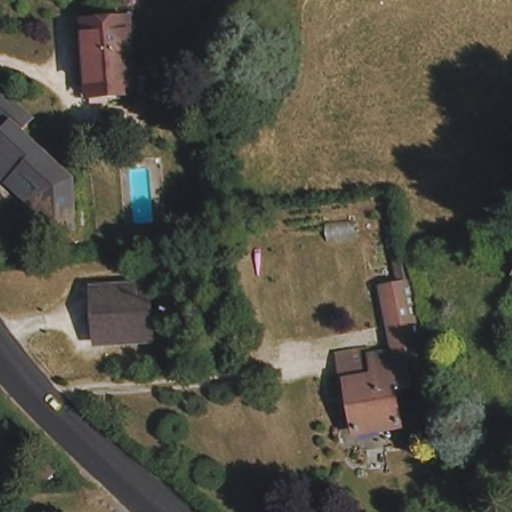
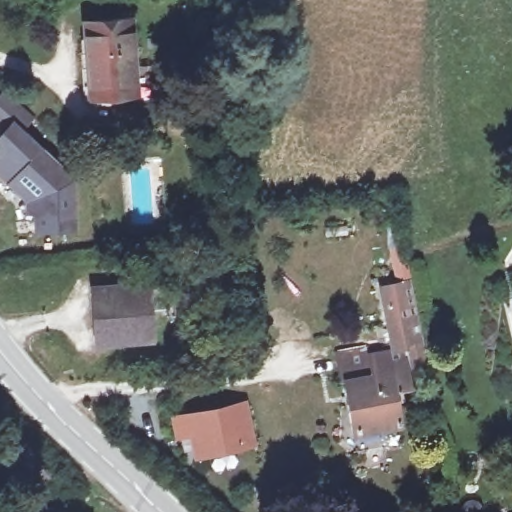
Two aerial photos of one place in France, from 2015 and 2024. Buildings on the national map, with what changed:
unchanged [(85,81),(81,24),(126,22),(129,67),(146,67),(147,89),(130,91),(106,92),(86,93),(85,81)]
unchanged [(75,182),(75,234),(33,232),(30,212),(0,176),(0,165),(6,157),(2,149),(7,142),(2,135),(12,122),(75,182)]
unchanged [(388,327),(380,290),(396,287),(389,263),(395,262),(403,260),(407,285),(415,322),(388,327)]
unchanged [(146,277),(152,330),(103,336),(96,283),(146,277)]
unchanged [(415,322),(417,332),(418,340),(420,349),(424,370),(425,373),(405,377),(400,352),(393,353),(388,327),(415,322)]
unchanged [(405,377),(407,389),(396,391),(400,395),(402,405),(395,407),(398,427),(356,434),(345,380),(339,382),(333,350),(366,345),(369,357),(393,353),(400,352),(405,377)]
new [(252,445),(197,457),(192,435),(178,438),(175,422),(188,419),(243,407),(252,445)]
unchanged [(20,430),(52,468),(43,477),(10,438),(20,430)]

